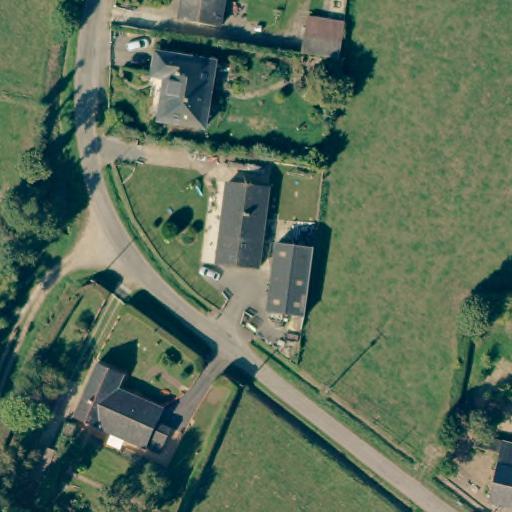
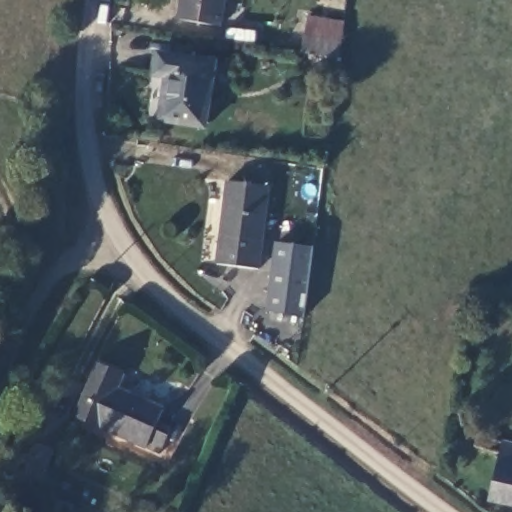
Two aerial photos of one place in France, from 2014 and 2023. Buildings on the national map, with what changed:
unchanged [(178,21),(181,0),(223,0),(219,27),(178,21)]
unchanged [(300,53),(305,18),(343,24),(341,40),(339,59),(300,53)]
unchanged [(200,130),(160,124),(165,81),(153,79),(156,57),(210,65),(200,130)]
unchanged [(258,267),(219,262),(230,181),(270,185),(258,267)]
unchanged [(270,313),(280,247),(311,250),(302,315),(270,313)]
unchanged [(71,416),(92,364),(117,375),(113,388),(161,407),(155,419),(170,425),(158,453),(71,416)]
unchanged [(493,449),(472,443),(475,432),(512,442),(512,508),(487,501),(493,449)]
unchanged [(27,480),(40,446),(58,453),(47,486),(27,480)]

